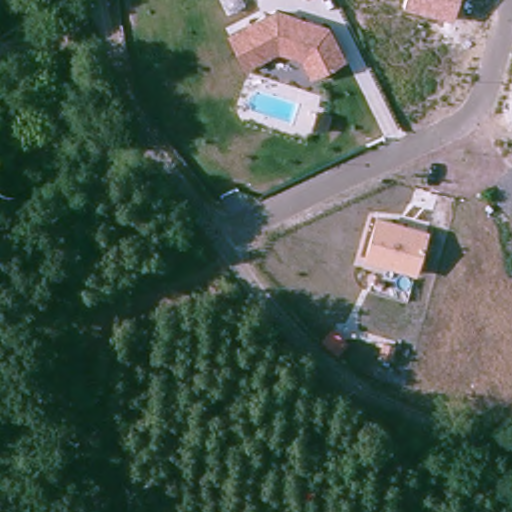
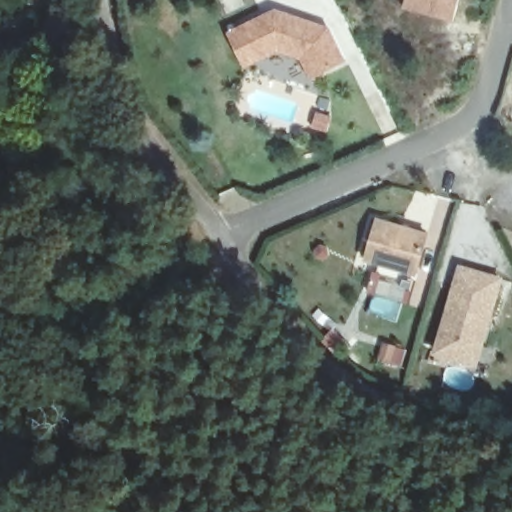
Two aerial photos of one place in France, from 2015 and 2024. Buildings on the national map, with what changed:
unchanged [(454,21),(404,8),(406,0),(459,0),(454,21)]
unchanged [(301,59),(277,51),(245,68),(226,32),(275,8),(330,26),(346,61),(310,78),(301,59)]
unchanged [(418,275),(365,261),(377,217),(429,230),(418,275)]
new [(457,263),(504,275),(478,367),(432,353),(457,263)]

